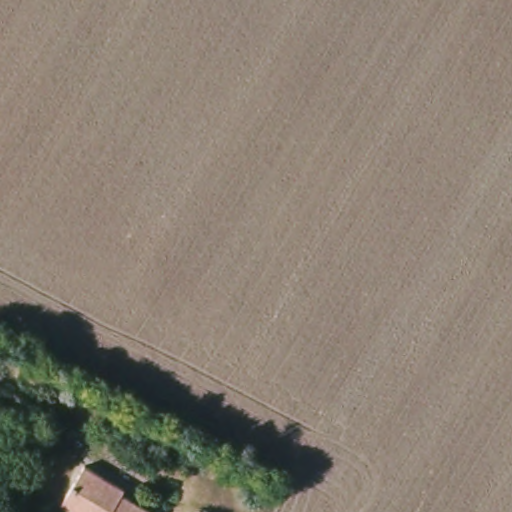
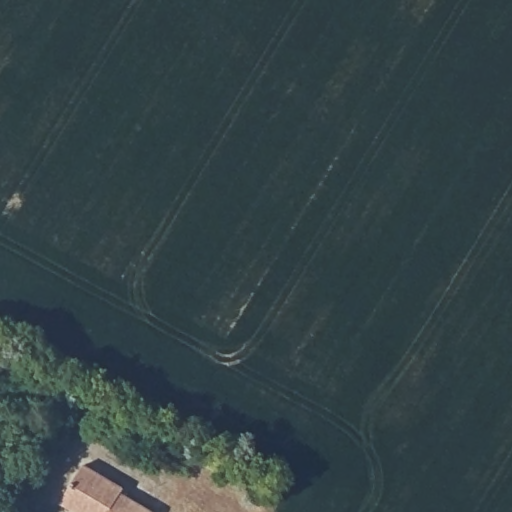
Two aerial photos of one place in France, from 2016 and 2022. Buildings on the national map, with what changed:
unchanged [(82,512),(64,500),(87,465),(127,490),(125,494),(154,512),(82,512)]

